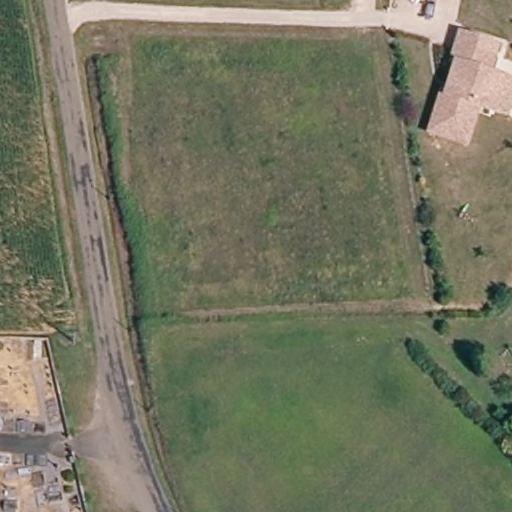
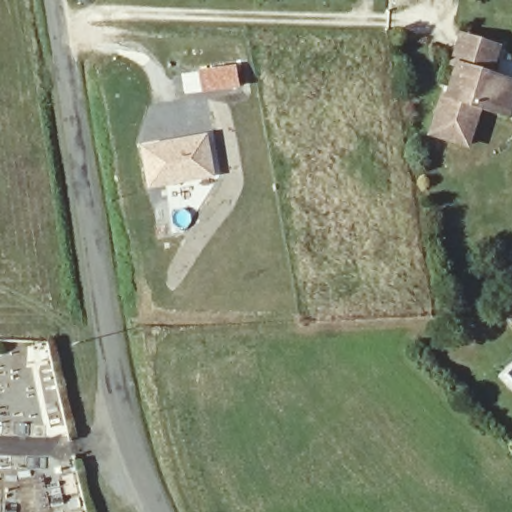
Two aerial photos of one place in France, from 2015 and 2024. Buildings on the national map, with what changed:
unchanged [(507,113),(491,109),(479,105),(470,145),(432,136),(441,96),(445,97),(453,66),(448,65),(456,35),(492,44),(485,72),(500,75),(512,78),(512,89),(507,113)]
new [(216,179),(148,190),(140,147),(207,133),(216,179)]

